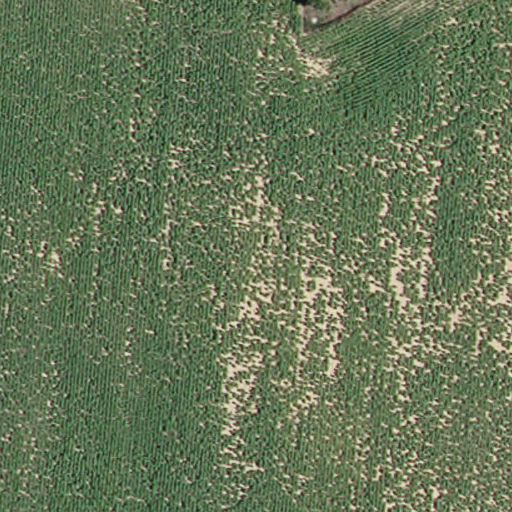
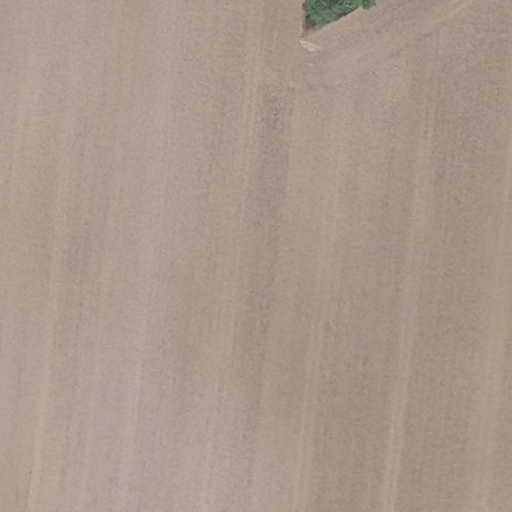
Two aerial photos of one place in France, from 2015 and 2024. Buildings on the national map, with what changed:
[]

